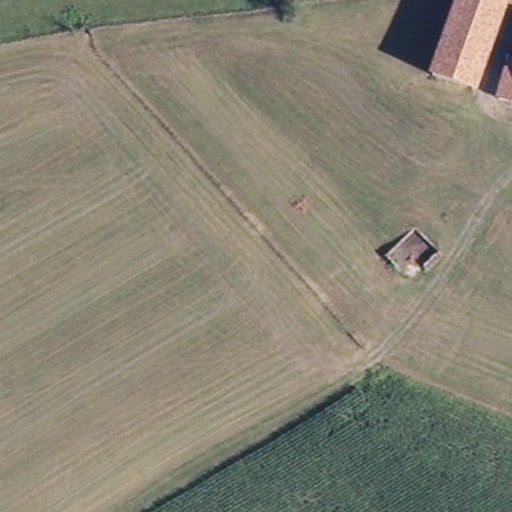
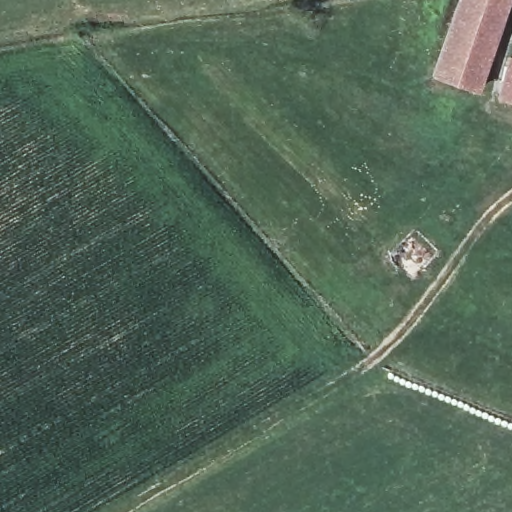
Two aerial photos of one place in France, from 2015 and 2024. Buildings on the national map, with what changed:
unchanged [(474,91),(433,79),(453,0),(500,0),(474,91)]
unchanged [(509,62),(512,63),(512,106),(498,102),(509,62)]

